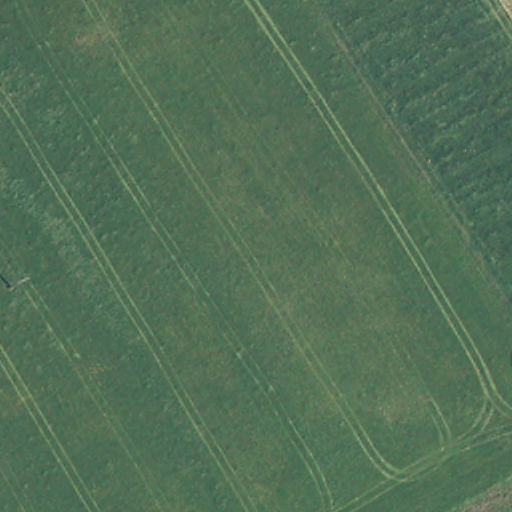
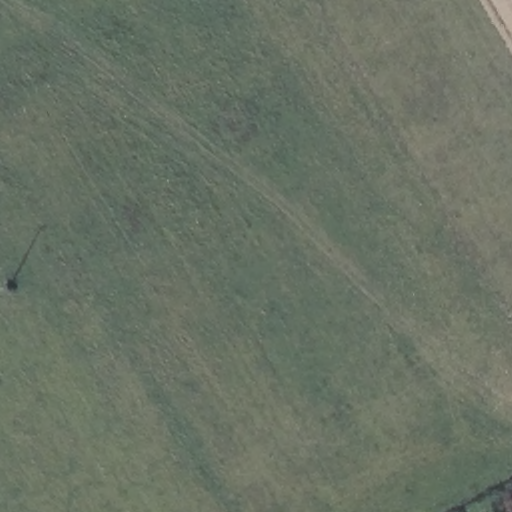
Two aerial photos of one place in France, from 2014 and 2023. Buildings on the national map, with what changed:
[]

